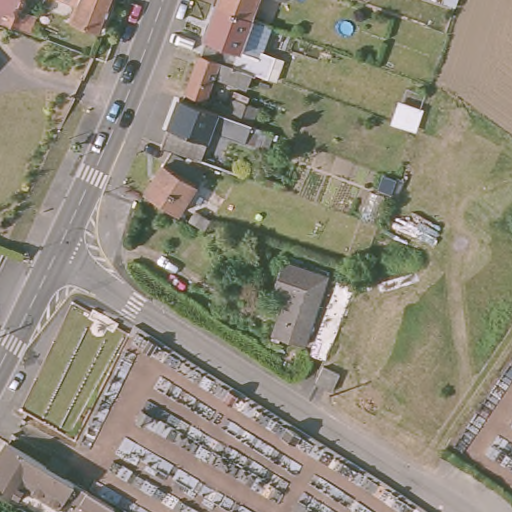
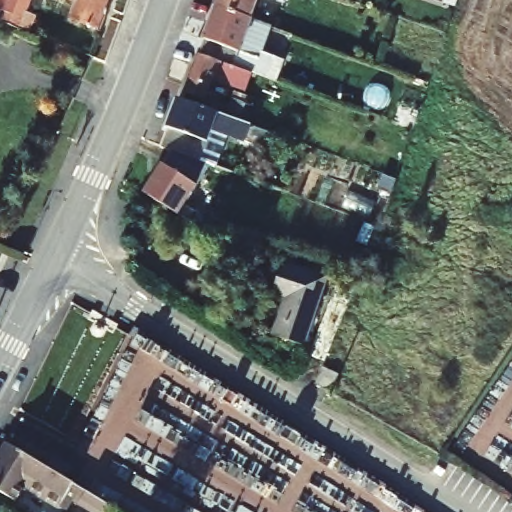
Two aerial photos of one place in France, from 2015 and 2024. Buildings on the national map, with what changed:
unchanged [(34,16),(28,32),(2,23),(0,22),(0,0),(29,0),(24,13),(34,16)]
unchanged [(70,18),(77,2),(72,0),(111,0),(100,30),(70,18)]
unchanged [(211,6),(213,0),(252,0),(245,19),(211,6)]
unchanged [(276,0),(282,0),(281,2),(276,0)]
unchanged [(443,3),(444,0),(457,0),(455,6),(443,3)]
unchanged [(245,19),(247,19),(266,26),(257,51),(278,59),(270,81),(248,73),(247,73),(226,66),(195,55),(200,40),(198,39),(211,6),(245,19)]
unchanged [(208,78),(200,101),(180,93),(193,54),(195,55),(226,66),(247,73),(241,89),(208,78)]
unchanged [(262,150),(207,130),(195,161),(166,151),(156,148),(174,98),(206,110),(210,101),(225,107),(231,92),(245,98),(242,104),(253,109),(247,125),(269,133),(262,150)]
unchanged [(172,214),(137,192),(166,151),(195,161),(205,164),(172,214)]
unchanged [(214,208),(205,202),(211,194),(220,200),(214,208)]
unchanged [(200,230),(184,221),(190,212),(205,222),(200,230)]
unchanged [(283,340),(253,330),(265,292),(253,288),(263,258),(306,273),(283,340)]
unchanged [(318,278),(333,285),(320,316),(304,356),(303,356),(290,350),(305,310),(318,278)]
unchanged [(320,369),(312,387),(295,379),(303,362),(320,369)]
unchanged [(119,512),(90,512),(72,501),(65,511),(32,489),(21,506),(0,493),(0,469),(13,448),(119,512)]
unchanged [(58,462),(65,466),(76,473),(70,482),(52,471),(58,462)]

